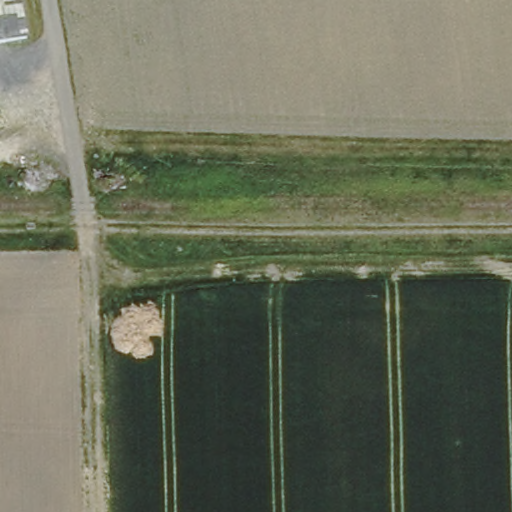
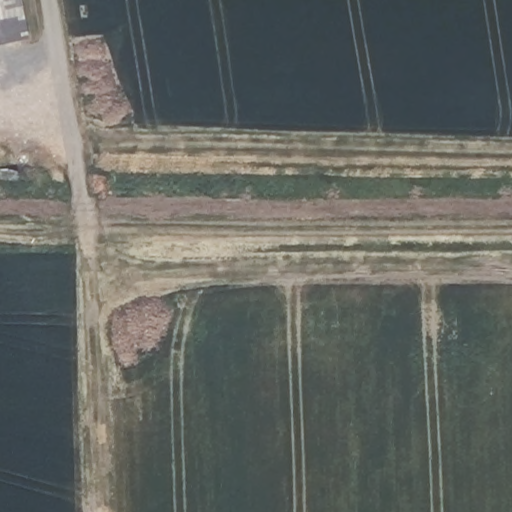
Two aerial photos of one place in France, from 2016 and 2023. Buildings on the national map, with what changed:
unchanged [(0,44),(0,0),(19,0),(25,39),(0,44)]

